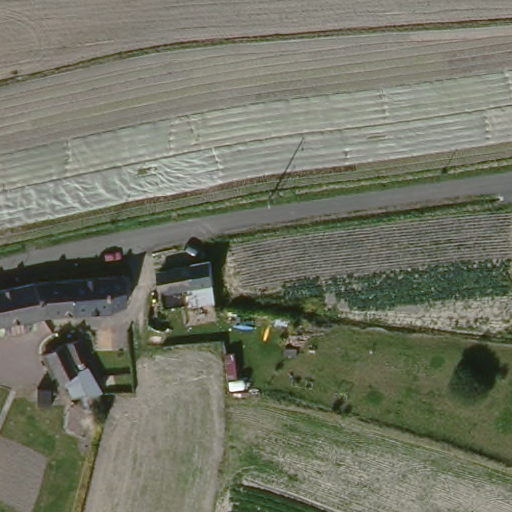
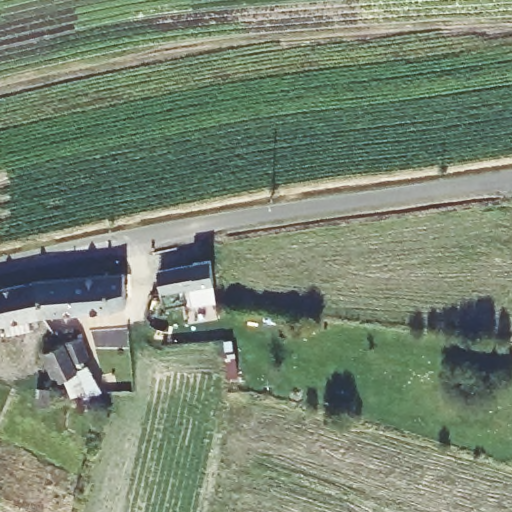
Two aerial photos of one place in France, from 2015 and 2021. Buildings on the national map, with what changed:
unchanged [(170,315),(166,299),(161,282),(159,271),(184,264),(186,274),(188,274),(213,267),(218,286),(216,286),(218,304),(170,315)]
unchanged [(126,277),(130,306),(83,312),(81,280),(126,277)]
unchanged [(81,280),(83,312),(46,315),(41,283),(81,280)]
unchanged [(46,315),(19,318),(0,324),(0,293),(41,283),(46,315)]
unchanged [(54,393),(48,363),(66,360),(64,346),(84,342),(91,375),(70,378),(71,390),(54,393)]

